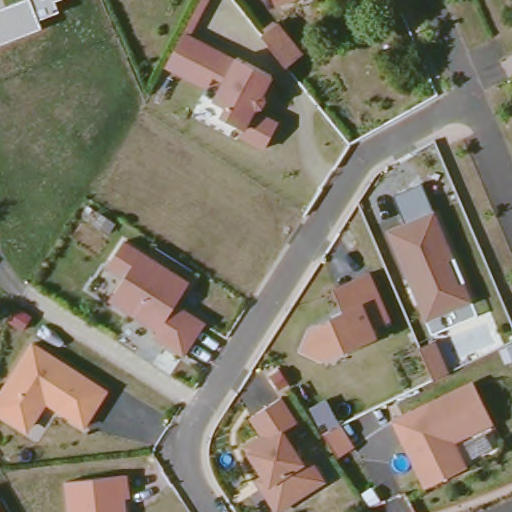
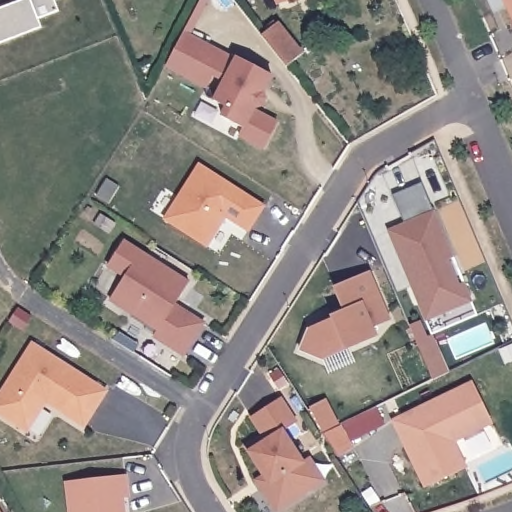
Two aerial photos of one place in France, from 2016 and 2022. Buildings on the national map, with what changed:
unchanged [(58,12),(38,20),(40,27),(0,43),(0,9),(25,0),(57,0),(55,1),(58,12)]
new [(505,0),(512,0),(512,14),(505,0)]
unchanged [(286,63),(263,34),(278,24),(301,53),(286,63)]
unchanged [(227,77),(223,83),(215,79),(209,92),(166,72),(188,31),(239,56),(227,77)]
unchanged [(226,106),(214,99),(227,77),(239,56),(273,75),(264,92),(265,99),(262,104),(260,105),(255,106),(253,109),(278,123),(263,148),(238,134),(242,127),(221,115),(226,106)]
new [(264,205),(248,233),(226,219),(208,250),(163,222),(199,164),(264,205)]
unchanged [(387,229),(433,210),(452,256),(462,282),(470,301),(439,314),(432,297),(417,303),(409,284),(406,275),(387,229)]
unchanged [(176,311),(184,316),(186,313),(207,326),(186,358),(157,339),(161,332),(114,302),(129,279),(112,268),(127,244),(193,286),(176,311)]
unchanged [(393,323),(376,330),(381,338),(325,362),(301,352),(308,331),(331,321),(331,315),(344,308),(335,287),(371,272),(393,323)]
unchanged [(24,432),(0,416),(0,400),(34,346),(108,394),(85,429),(48,405),(41,406),(24,432)]
unchanged [(269,374),(278,368),(286,381),(277,387),(269,374)]
unchanged [(491,425),(451,444),(464,471),(424,491),(392,424),(472,386),(491,425)]
unchanged [(261,475),(241,445),(259,434),(246,415),(278,395),(294,420),(281,429),(301,460),(316,483),(309,487),(274,510),(258,487),(253,479),(261,475)]
unchanged [(336,454),(321,432),(337,424),(351,445),(336,454)]
unchanged [(129,476),(132,499),(128,499),(129,512),(69,512),(66,482),(129,476)]
unchanged [(0,508),(2,512),(0,512),(0,508)]

